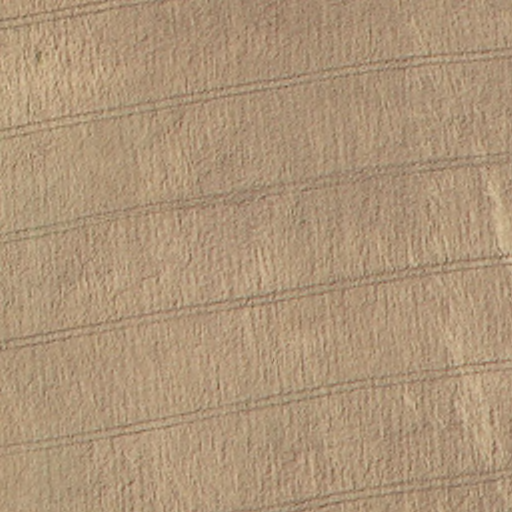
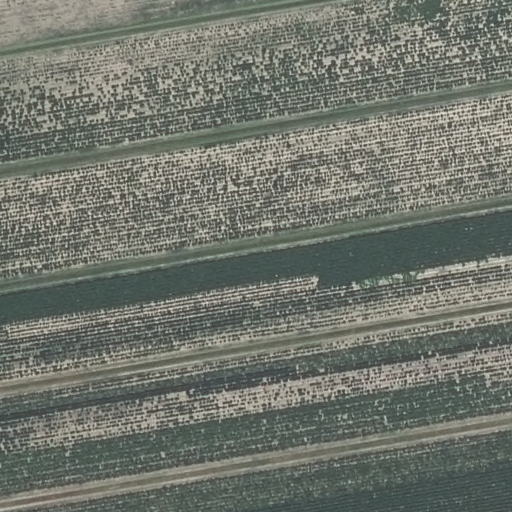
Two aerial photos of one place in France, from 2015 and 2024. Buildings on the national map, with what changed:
[]

